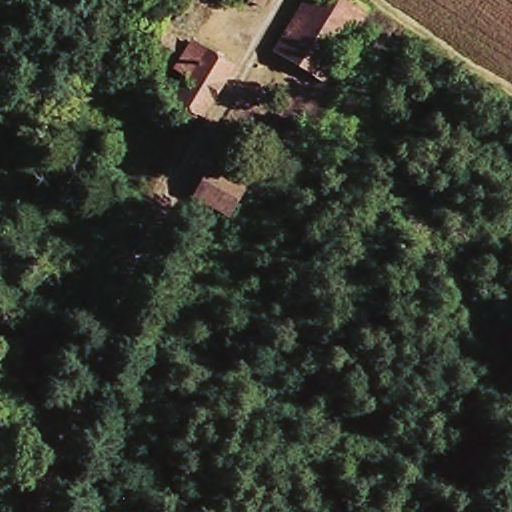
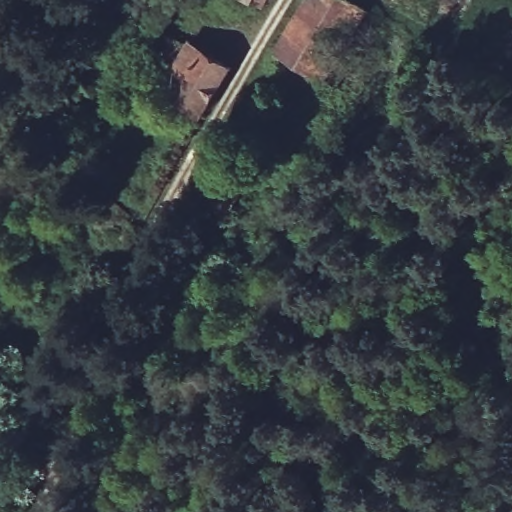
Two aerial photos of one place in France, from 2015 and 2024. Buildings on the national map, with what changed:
unchanged [(242,0),(260,0),(255,7),(242,0)]
unchanged [(275,52),(306,0),(360,0),(367,6),(320,81),(275,52)]
unchanged [(191,42),(234,68),(204,118),(175,101),(189,75),(167,62),(140,45),(150,26),(165,34),(167,31),(179,39),(189,45),(191,42)]
unchanged [(216,165),(247,184),(230,212),(200,194),(216,165)]
unchanged [(127,239),(101,212),(110,201),(118,190),(139,199),(134,207),(146,218),(127,239)]

